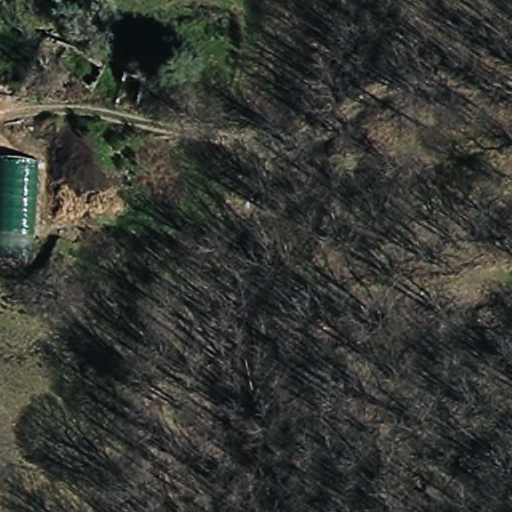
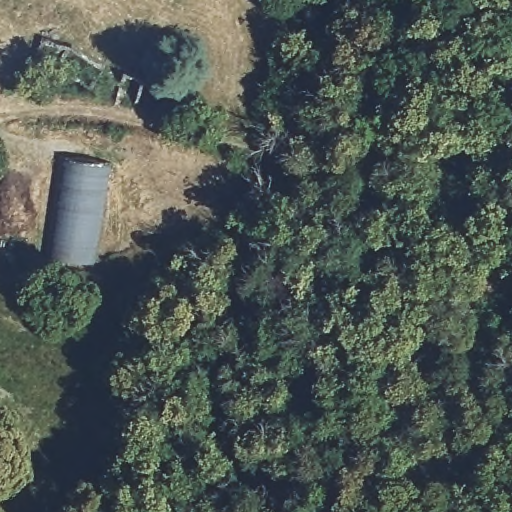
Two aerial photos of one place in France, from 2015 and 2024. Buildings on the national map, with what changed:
unchanged [(0,111),(0,94),(12,96),(9,108),(0,111)]
new [(110,159),(94,265),(45,261),(59,153),(110,159)]
unchanged [(0,259),(0,158),(38,160),(31,261),(0,259)]

